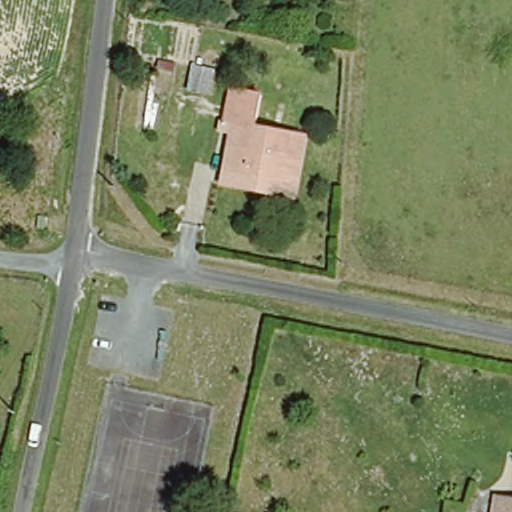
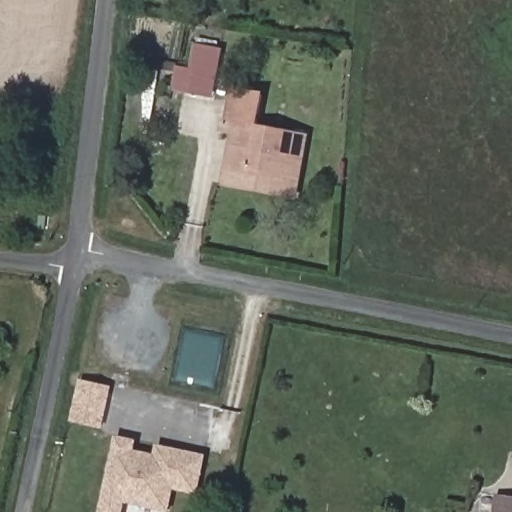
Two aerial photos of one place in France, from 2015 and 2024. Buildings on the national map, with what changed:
new [(196,45),(223,49),(214,98),(186,94),(196,45)]
unchanged [(233,133),(221,131),(222,121),(226,122),(232,89),(261,92),(256,127),(305,136),(298,180),(251,172),(251,175),(226,171),(233,133)]
unchanged [(296,196),(224,184),(226,171),(251,175),(251,172),(298,180),(296,196)]
new [(104,428),(72,422),(82,380),(112,387),(104,428)]
new [(171,512),(162,512),(127,505),(125,512),(100,512),(115,436),(137,439),(135,450),(154,452),(156,445),(208,455),(199,495),(175,490),(171,512)]
unchanged [(512,492),(512,512),(489,512),(495,487),(512,492)]

